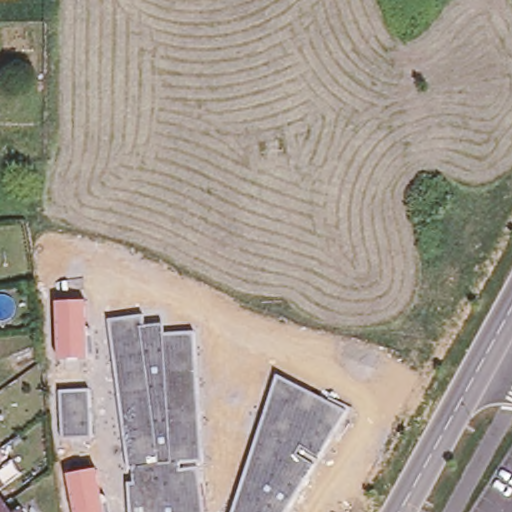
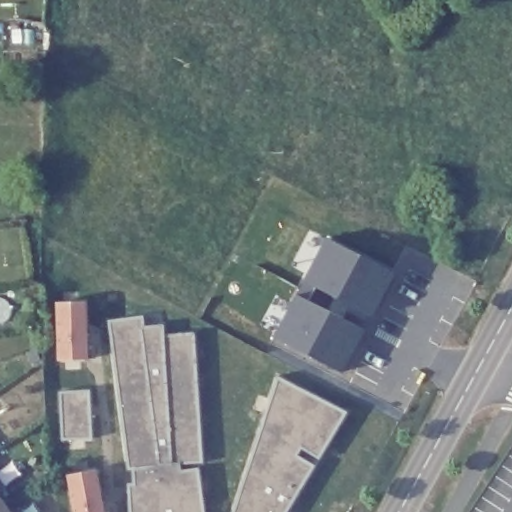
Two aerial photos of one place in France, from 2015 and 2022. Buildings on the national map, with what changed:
new [(395,272),(345,374),(273,337),(325,238),(395,272)]
unchanged [(87,300),(90,359),(57,360),(55,301),(87,300)]
unchanged [(142,315),(144,325),(162,324),(163,333),(193,332),(202,463),(199,463),(204,512),(129,512),(127,482),(133,482),(132,466),(128,466),(108,320),(142,315)]
unchanged [(277,373),(348,411),(287,512),(232,512),(277,373)]
unchanged [(90,389),(93,438),(60,439),(57,390),(90,389)]
unchanged [(98,468),(106,512),(72,512),(65,474),(98,468)]
unchanged [(0,494),(0,484),(5,490),(0,494)]
unchanged [(0,508),(0,500),(3,505),(0,508)]
unchanged [(0,508),(3,505),(8,512),(0,512),(0,508)]

